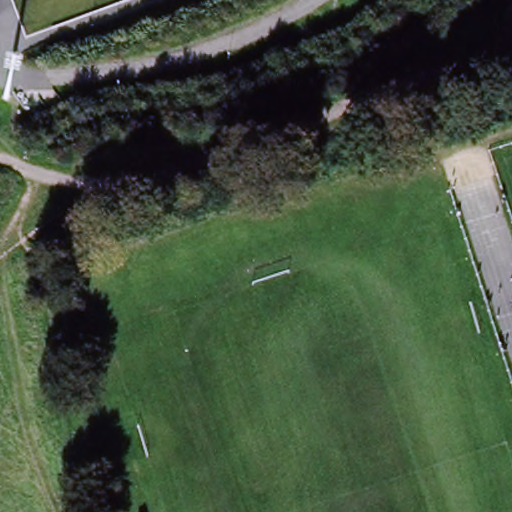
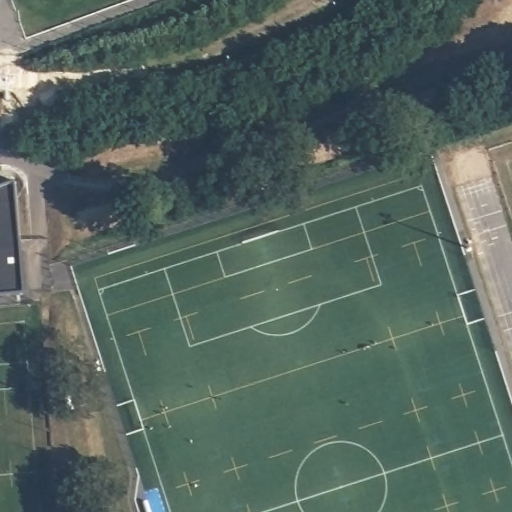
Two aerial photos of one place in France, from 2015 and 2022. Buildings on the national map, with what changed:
new [(26,292),(0,295),(0,191),(21,183),(26,292)]
new [(146,512),(143,504),(148,503),(152,512),(146,512)]

